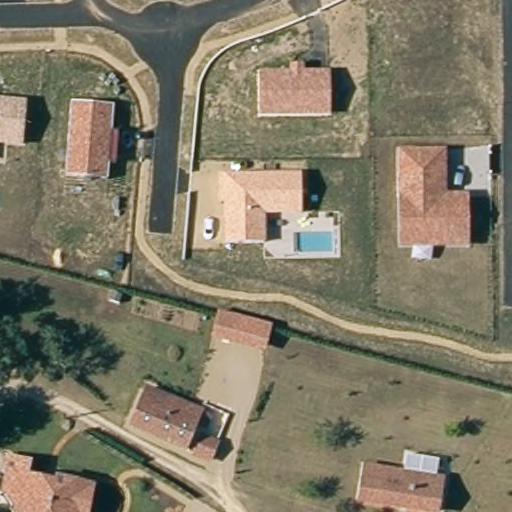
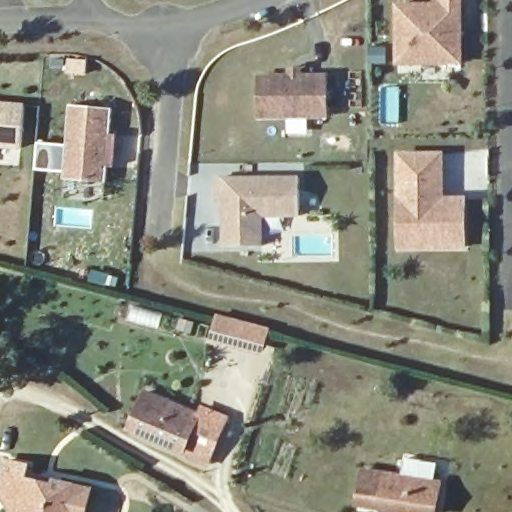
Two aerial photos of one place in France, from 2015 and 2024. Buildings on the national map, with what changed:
new [(395,66),(396,3),(432,4),(432,0),(463,0),(463,66),(395,66)]
unchanged [(298,67),(310,67),(310,75),(336,74),(336,115),(267,116),(267,75),(298,75),(298,67)]
unchanged [(22,148),(0,148),(0,100),(26,102),(22,148)]
unchanged [(113,107),(111,134),(117,135),(114,165),(107,165),(106,182),(66,179),(71,105),(113,107)]
unchanged [(467,195),(467,250),(400,250),(397,152),(446,152),(445,196),(467,195)]
unchanged [(266,245),(224,246),(223,206),(217,206),(217,176),(300,175),(301,216),(265,218),(266,245)]
unchanged [(271,327),(263,355),(209,342),(217,313),(271,327)]
unchanged [(182,450),(157,441),(151,439),(135,432),(145,398),(162,404),(193,415),(182,450)]
unchanged [(197,437),(211,441),(206,460),(192,455),(197,437)]
unchanged [(428,457),(427,477),(432,477),(432,512),(387,512),(357,511),(358,472),(395,475),(396,455),(428,457)]
unchanged [(26,469),(26,480),(54,487),(56,482),(91,491),(86,512),(15,512),(13,508),(4,495),(9,479),(1,476),(4,462),(26,469)]

